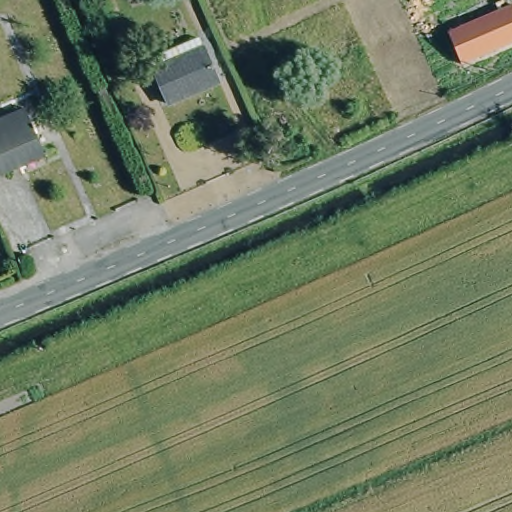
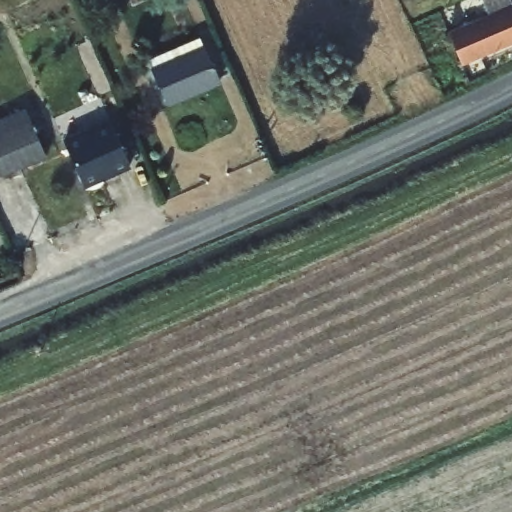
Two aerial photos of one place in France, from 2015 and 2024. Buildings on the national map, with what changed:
unchanged [(512,16),(512,39),(457,63),(443,32),(507,4),(512,16)]
unchanged [(221,84),(169,105),(155,71),(207,52),(221,84)]
unchanged [(0,175),(0,117),(30,106),(47,156),(0,175)]
new [(84,188),(63,139),(109,120),(130,169),(84,188)]

